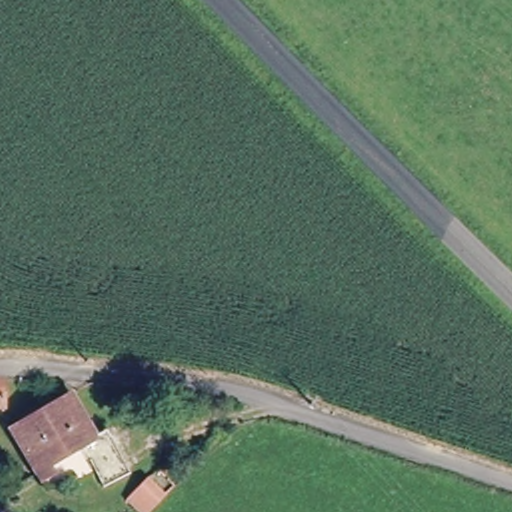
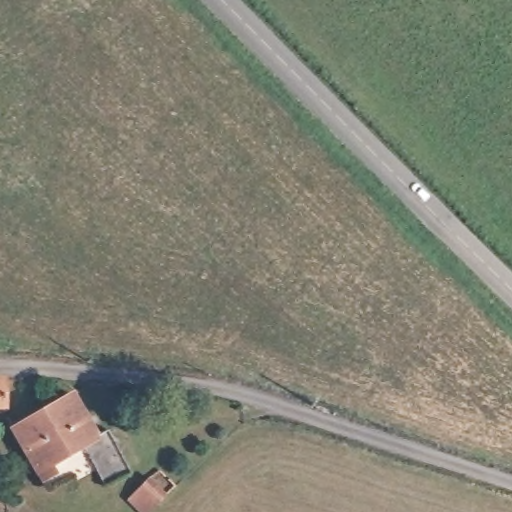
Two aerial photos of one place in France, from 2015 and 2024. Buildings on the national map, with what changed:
unchanged [(1,409),(0,409),(0,383),(1,409)]
unchanged [(11,426),(70,394),(91,434),(94,439),(77,448),(87,466),(80,469),(71,454),(58,462),(65,474),(44,487),(11,426)]
unchanged [(77,448),(94,439),(91,434),(100,430),(124,472),(117,477),(99,487),(87,466),(77,448)]
unchanged [(129,504),(145,487),(161,502),(151,512),(128,512),(125,509),(129,504)]

